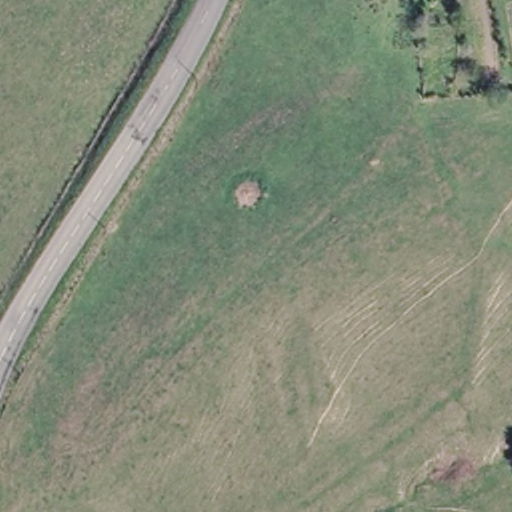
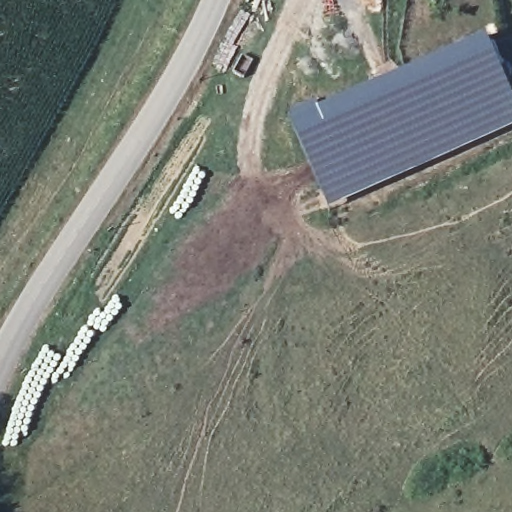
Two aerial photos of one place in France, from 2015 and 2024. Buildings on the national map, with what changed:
new [(290,122),(487,36),(512,95),(512,131),(329,209),(290,122)]

